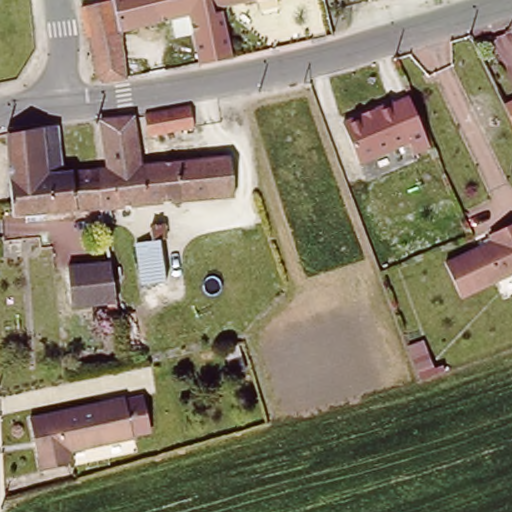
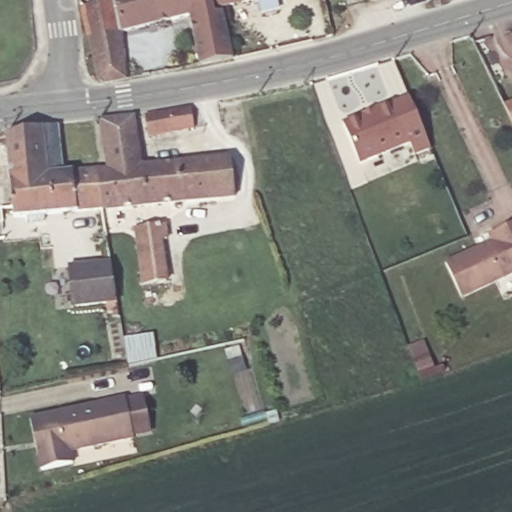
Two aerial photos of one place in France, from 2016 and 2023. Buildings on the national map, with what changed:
unchanged [(120,37),(113,3),(113,0),(214,0),(216,12),(217,17),(223,16),(233,62),(200,69),(190,22),(120,37)]
unchanged [(262,0),(216,12),(214,0),(262,0)]
unchanged [(369,0),(382,0),(370,4),(369,0)]
unchanged [(97,81),(83,9),(113,3),(120,37),(128,83),(115,86),(105,86),(97,81)]
unchanged [(495,92),(512,85),(512,128),(495,92)]
unchanged [(407,97),(431,150),(415,156),(410,146),(358,166),(342,122),(407,97)]
unchanged [(195,130),(147,139),(144,118),(192,111),(195,130)]
unchanged [(141,288),(136,247),(152,245),(148,209),(102,213),(98,172),(108,172),(102,124),(131,120),(136,119),(142,167),(230,158),(235,200),(162,207),(165,245),(160,246),(165,286),(141,288)]
unchanged [(27,221),(15,221),(7,137),(16,136),(58,130),(65,176),(98,172),(102,213),(27,221)]
unchanged [(465,297),(448,262),(495,241),(492,234),(512,225),(512,274),(465,297)]
unchanged [(106,318),(106,313),(101,313),(100,304),(66,308),(61,267),(105,262),(113,317),(106,318)]
unchanged [(69,452),(70,463),(40,471),(28,421),(122,397),(124,403),(131,402),(140,400),(145,425),(145,427),(131,432),(132,437),(69,452)]

